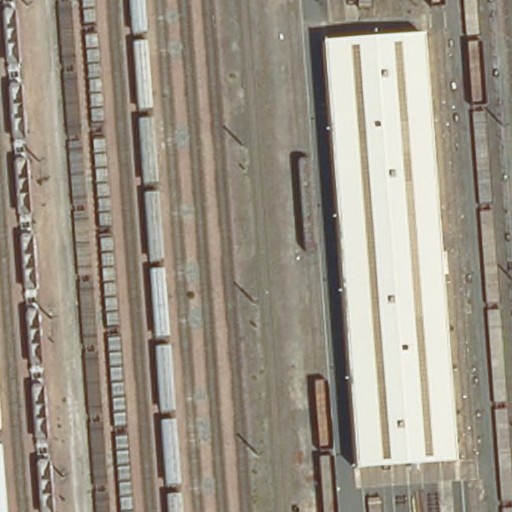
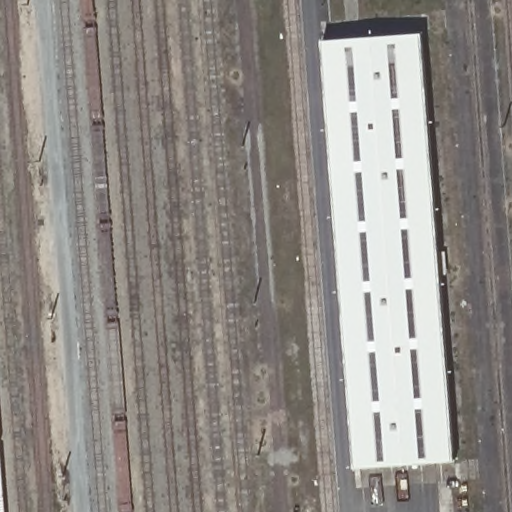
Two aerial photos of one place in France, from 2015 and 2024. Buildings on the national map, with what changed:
unchanged [(422,34),(454,462),(353,469),(321,41),(422,34)]

